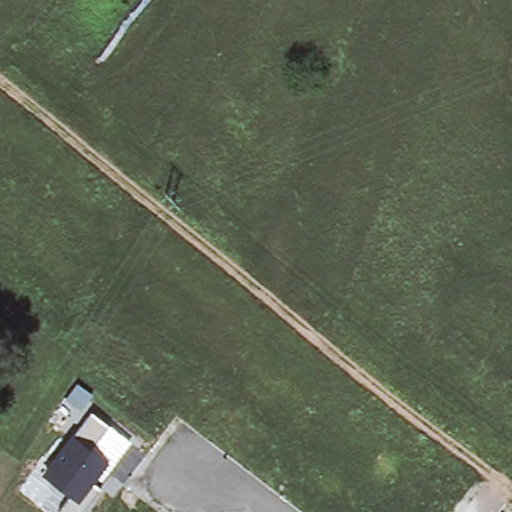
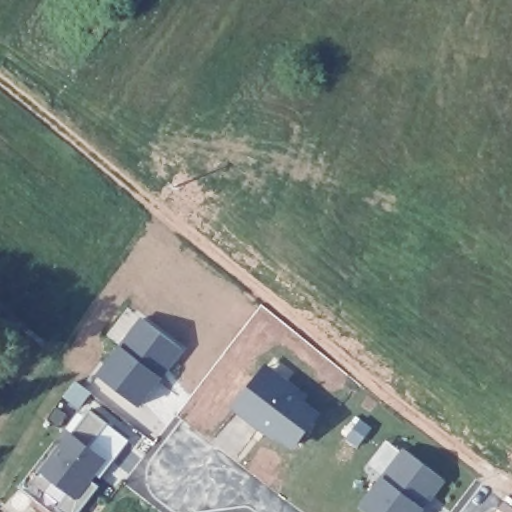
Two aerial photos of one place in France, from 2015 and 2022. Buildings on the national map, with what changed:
new [(141,319),(183,350),(138,410),(98,376),(141,319)]
new [(263,369),(282,383),(301,398),(297,403),(313,417),(290,448),(260,425),(257,428),(232,409),(259,375),(263,369)]
unchanged [(70,432),(72,433),(91,410),(130,440),(100,478),(97,475),(92,481),(100,486),(79,512),(65,512),(58,507),(68,495),(39,470),(70,432)]
new [(425,510),(423,512),(363,512),(357,507),(381,476),(402,447),(445,481),(425,510)]

